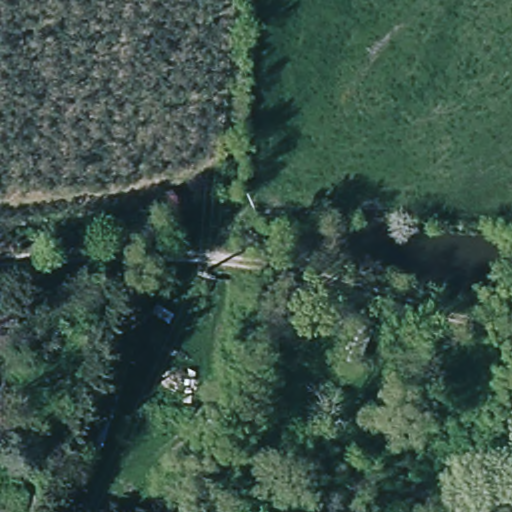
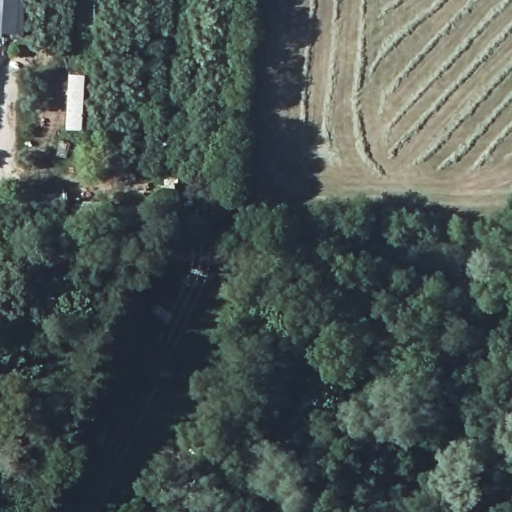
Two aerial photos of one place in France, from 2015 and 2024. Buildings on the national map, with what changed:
new [(0,35),(0,0),(25,0),(23,36),(0,35)]
unchanged [(265,296),(249,288),(255,272),(273,278),(265,296)]
unchanged [(117,349),(137,349),(136,364),(129,366),(104,452),(82,450),(117,349)]
unchanged [(33,371),(31,422),(14,421),(17,369),(33,371)]

